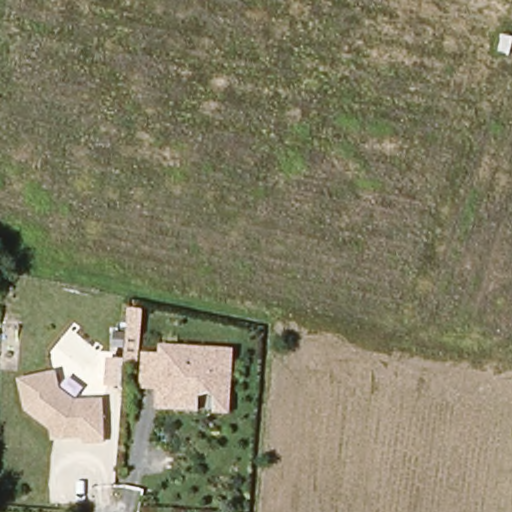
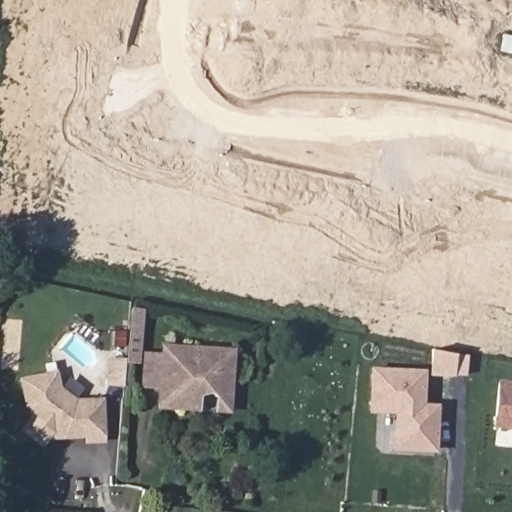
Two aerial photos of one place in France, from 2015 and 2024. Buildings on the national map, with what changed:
unchanged [(233,348),(231,412),(215,412),(215,397),(209,394),(200,397),(199,412),(157,410),(158,390),(142,388),(143,353),(161,354),(161,344),(233,348)]
new [(434,350),(457,355),(456,375),(433,374),(434,350)]
new [(373,369),(424,371),(423,404),(438,405),(436,448),(396,447),(398,410),(372,409),(373,369)]
unchanged [(103,400),(101,443),(87,444),(85,437),(50,439),(49,428),(24,408),(19,379),(56,372),(62,390),(76,398),(103,400)]
new [(512,385),(512,429),(497,427),(501,384),(512,385)]

